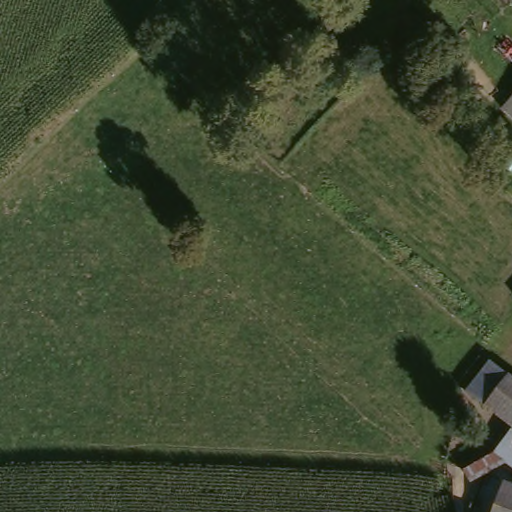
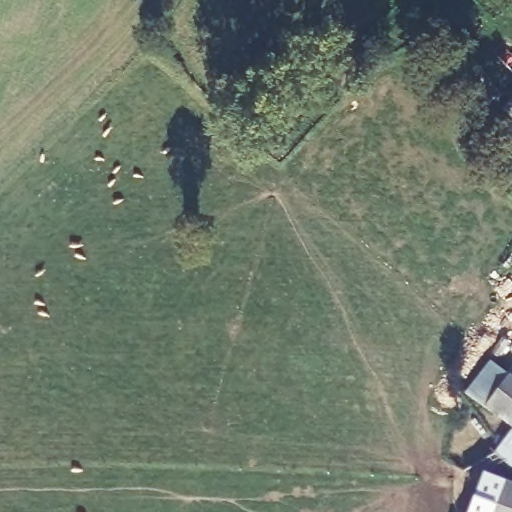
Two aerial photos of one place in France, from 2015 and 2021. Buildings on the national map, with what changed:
unchanged [(512,113),(503,105),(512,95),(512,113)]
unchanged [(498,356),(512,366),(512,417),(472,387),(498,356)]
unchanged [(498,497),(506,475),(512,478),(512,512),(493,512),(498,497)]

